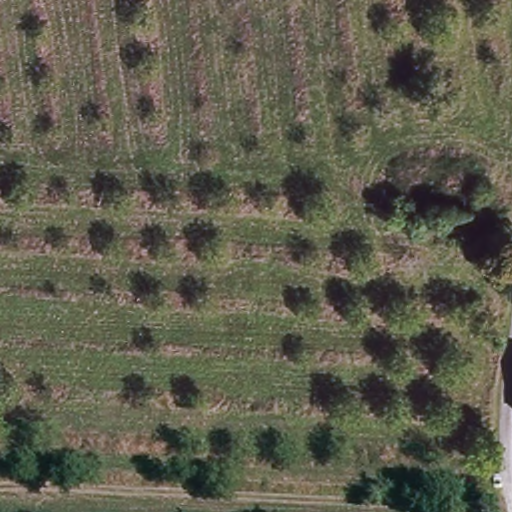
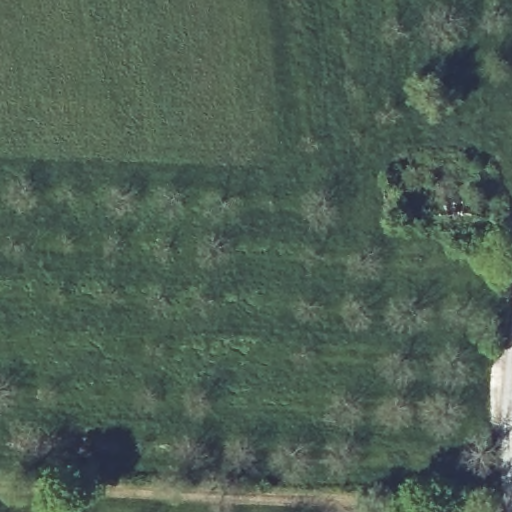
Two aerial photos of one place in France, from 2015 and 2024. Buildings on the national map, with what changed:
[]

